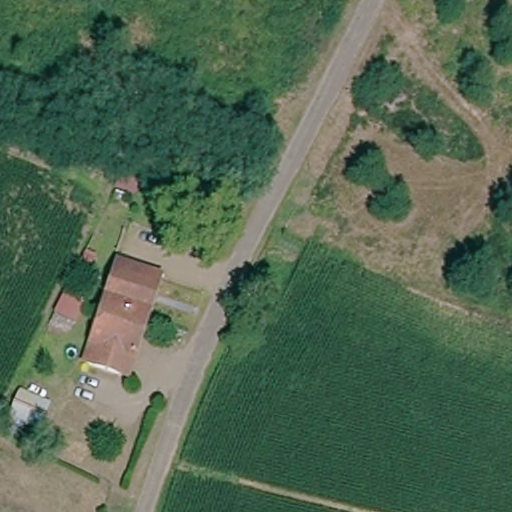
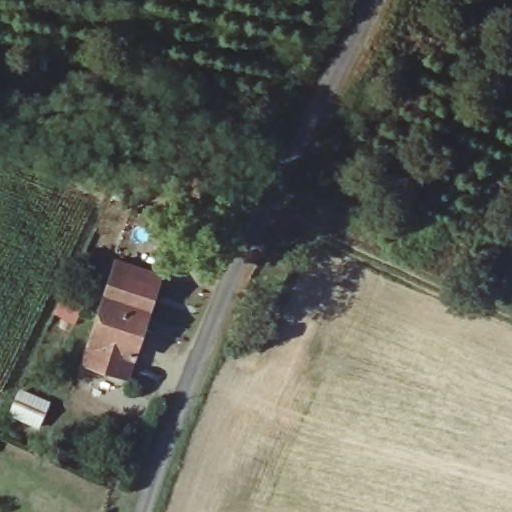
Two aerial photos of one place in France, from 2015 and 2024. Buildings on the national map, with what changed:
unchanged [(79,366),(89,342),(122,262),(167,281),(134,365),(126,385),(79,366)]

